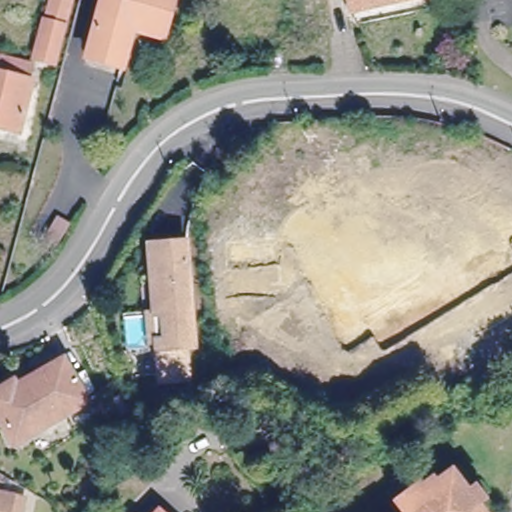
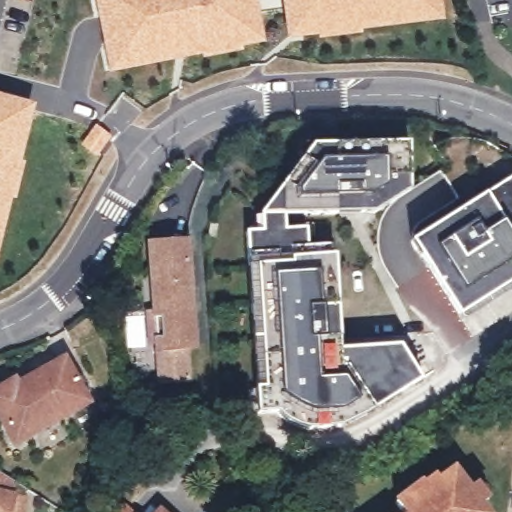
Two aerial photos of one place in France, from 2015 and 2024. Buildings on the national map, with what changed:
demolished [(164,32),(137,24),(128,54),(116,50),(115,56),(92,50),(104,8),(113,10),(116,0),(174,0),(164,32)]
new [(264,42),(241,47),(242,51),(202,59),(201,54),(109,72),(95,0),(256,0),(264,42)]
new [(444,19),(361,30),(361,34),(317,40),(317,35),(288,38),(282,0),(441,0),(444,19)]
demolished [(375,4),(374,0),(392,0),(375,4)]
demolished [(56,62),(35,56),(45,19),(66,25),(56,62)]
demolished [(0,70),(32,78),(18,131),(0,127),(0,70)]
new [(20,161),(24,163),(15,202),(11,200),(0,243),(0,97),(34,106),(20,161)]
new [(283,231),(303,229),(305,247),(330,245),(332,256),(336,307),(337,338),(337,349),(399,345),(419,378),(373,407),(342,424),(328,427),(314,428),(301,427),(288,420),(278,410),(258,412),(256,388),(245,233),(262,232),(260,212),(313,144),(407,142),(408,188),(372,211),(281,214),(283,231)]
new [(512,176),(512,281),(459,314),(410,240),(484,193),(512,176)]
demolished [(469,235),(475,243),(430,273),(406,236),(464,196),(484,225),(469,235)]
demolished [(356,244),(369,236),(364,229),(389,212),(406,236),(381,254),(398,279),(386,287),(356,244)]
demolished [(301,281),(231,286),(228,239),(298,235),(301,281)]
unchanged [(145,311),(152,311),(152,305),(157,305),(153,241),(184,240),(191,341),(154,342),(154,338),(145,338),(145,311)]
unchanged [(81,395),(16,433),(0,406),(0,393),(60,359),(81,395)]
unchanged [(407,501),(404,498),(422,486),(427,492),(438,484),(441,488),(455,477),(469,496),(478,490),(490,507),(486,510),(485,508),(480,511),(481,512),(399,512),(396,508),(407,501)]
unchanged [(27,512),(0,512),(0,495),(29,503),(27,512)]
unchanged [(165,512),(160,512),(162,509),(165,512)]

